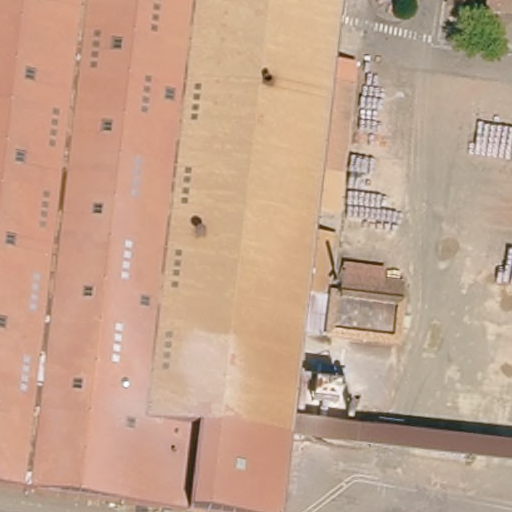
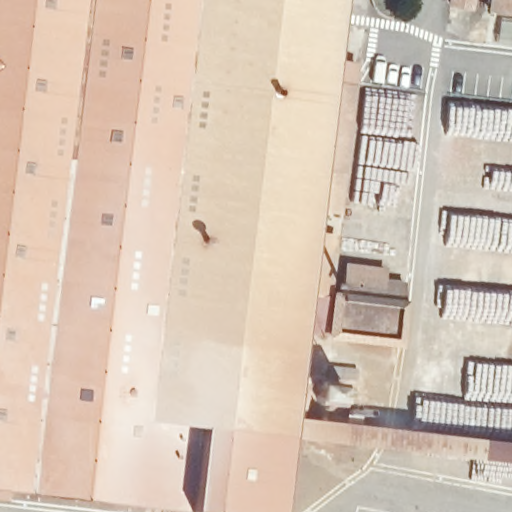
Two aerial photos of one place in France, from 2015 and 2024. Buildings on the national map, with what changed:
unchanged [(388,333),(386,348),(295,336),(270,512),(229,512),(0,480),(0,0),(333,0),(322,79),(346,83),(328,214),(305,212),(306,233),(325,235),(320,274),(327,274),(320,324),(388,333)]
unchanged [(447,8),(447,0),(469,0),(468,10),(447,8)]
unchanged [(490,0),(512,0),(512,14),(489,11),(490,0)]
unchanged [(394,284),(388,333),(320,324),(327,274),(394,284)]

